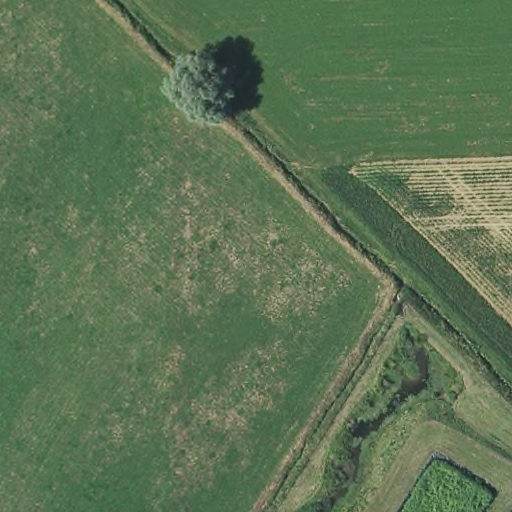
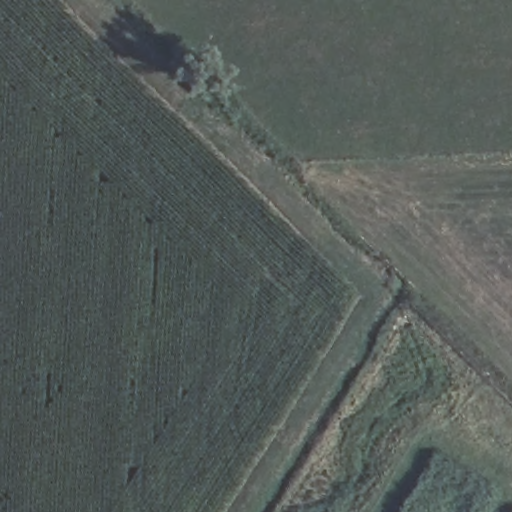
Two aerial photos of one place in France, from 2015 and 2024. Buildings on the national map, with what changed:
[]

